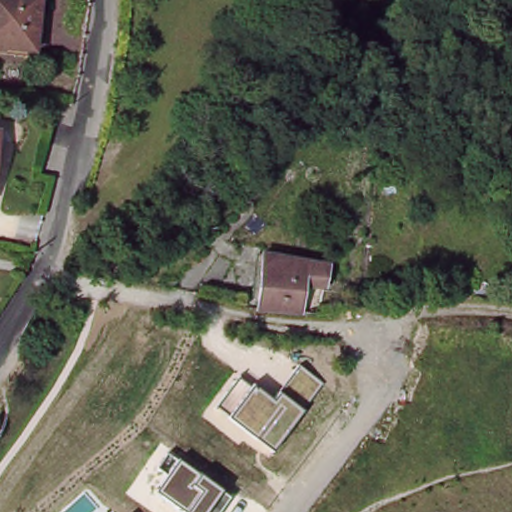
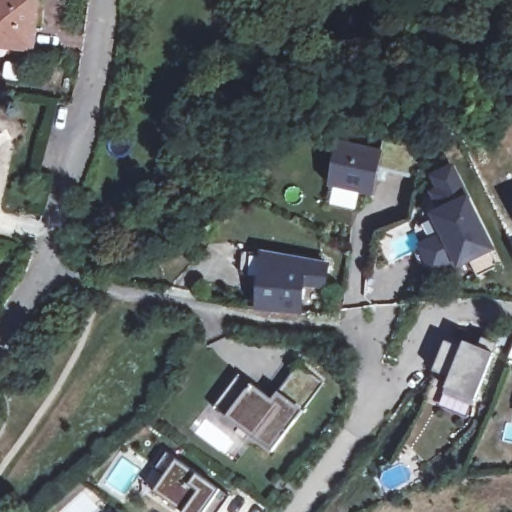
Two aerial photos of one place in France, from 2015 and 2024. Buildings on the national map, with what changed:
unchanged [(37,45),(31,45),(30,51),(0,48),(0,0),(41,0),(39,26),(37,45)]
new [(333,140),(375,149),(378,136),(412,143),(406,173),(379,167),(377,179),(371,177),(367,193),(345,188),(346,185),(325,181),(333,140)]
new [(415,225),(422,195),(437,187),(430,174),(452,162),(485,244),(494,262),(472,273),(464,254),(457,250),(429,264),(410,228),(415,225)]
unchanged [(304,275),(297,305),(251,297),(261,246),(327,257),(323,279),(304,275)]
new [(447,340),(477,353),(483,337),(499,344),(476,401),(447,389),(451,378),(434,371),(447,340)]
new [(511,358),(512,355),(512,358),(511,358)]
unchanged [(237,377),(270,401),(296,367),(320,384),(271,451),(214,407),(237,377)]
unchanged [(168,474),(155,465),(167,450),(229,496),(217,512),(180,512),(154,493),(168,474)]

